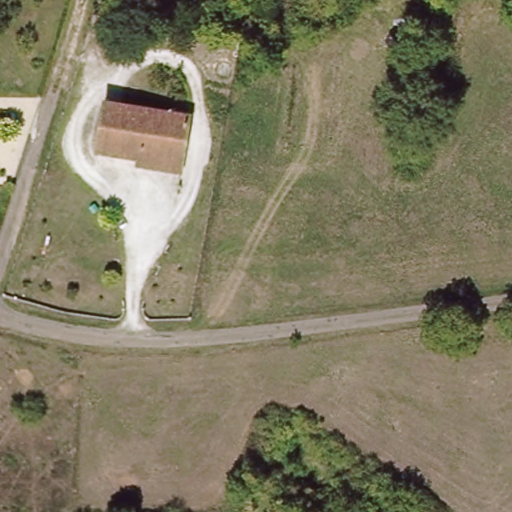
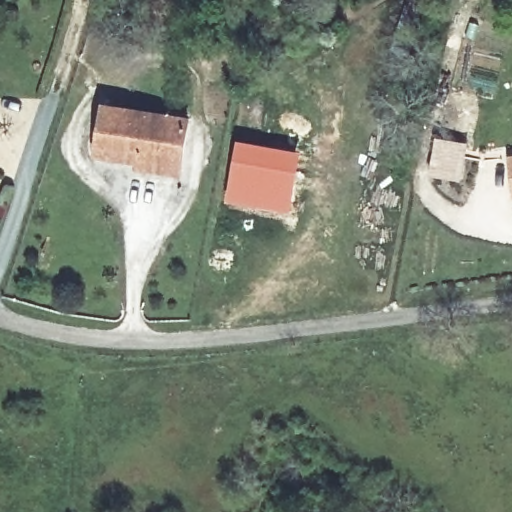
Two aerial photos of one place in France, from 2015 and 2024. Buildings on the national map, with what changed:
unchanged [(138,169),(139,163),(96,156),(104,106),(189,120),(183,160),(181,175),(138,169)]
new [(464,181),(429,177),(434,136),(470,143),(464,181)]
new [(237,139),(300,151),(289,214),(225,201),(237,139)]
new [(512,156),(512,173),(510,156),(512,156)]

